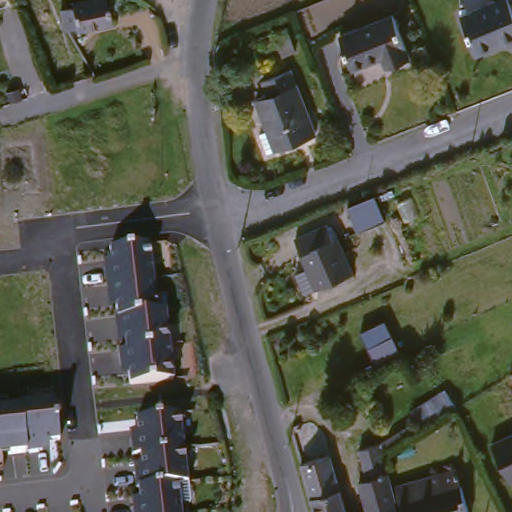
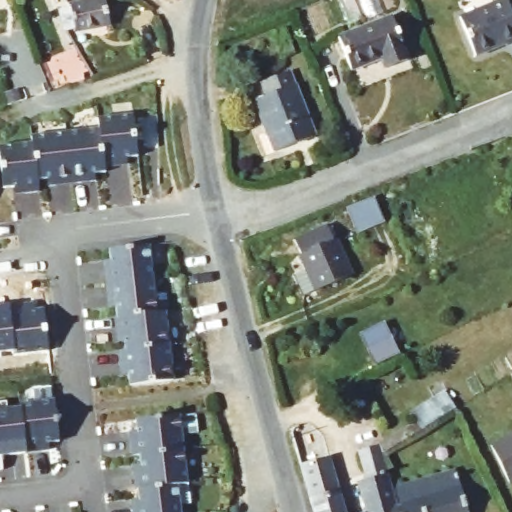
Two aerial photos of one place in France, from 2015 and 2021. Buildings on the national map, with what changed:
unchanged [(86,0),(105,0),(109,24),(76,31),(75,29),(66,30),(64,31),(60,10),(71,7),(70,4),(86,0)]
unchanged [(512,11),(512,43),(506,46),(506,43),(476,56),(459,16),(499,0),(508,0),(512,11)]
unchanged [(393,16),(409,60),(385,69),(381,57),(351,69),(338,37),(393,16)]
unchanged [(295,52),(282,57),(273,32),(286,27),(295,52)]
unchanged [(253,133),(262,130),(249,99),(261,94),(256,80),(284,69),(310,135),(270,151),(261,154),(253,133)]
new [(0,168),(0,145),(33,142),(32,135),(98,127),(98,117),(134,112),(138,156),(128,157),(129,162),(104,166),(105,171),(94,172),(95,177),(48,182),(48,177),(38,178),(39,189),(14,192),(13,186),(1,186),(0,168)]
unchanged [(353,223),(345,207),(372,194),(383,219),(370,225),(356,232),(353,223)]
unchanged [(294,275),(306,269),(299,253),(294,239),(326,225),(332,238),(336,237),(352,273),(316,290),(304,295),(294,275)]
unchanged [(129,372),(121,373),(118,347),(125,347),(124,337),(118,338),(114,302),(109,303),(104,258),(111,257),(110,247),(148,243),(156,313),(168,312),(174,380),(131,385),(129,372)]
unchanged [(368,349),(393,337),(401,353),(376,366),(368,349)]
unchanged [(512,374),(512,389),(506,378),(512,374)]
unchanged [(451,412),(415,434),(406,421),(442,399),(451,412)]
unchanged [(61,446),(28,451),(27,458),(0,461),(0,411),(54,405),(61,446)]
unchanged [(177,497),(179,512),(133,512),(131,498),(138,497),(131,426),(178,422),(186,496),(177,497)]
unchanged [(491,445),(512,434),(512,481),(509,482),(491,445)]
unchanged [(391,510),(392,512),(360,512),(353,487),(361,484),(353,455),(373,449),(389,510),(391,510)]
unchanged [(334,494),(339,512),(308,512),(305,502),(296,468),(324,460),(334,494)]
unchanged [(389,492),(450,475),(461,512),(392,512),(391,510),(393,508),(389,492)]

